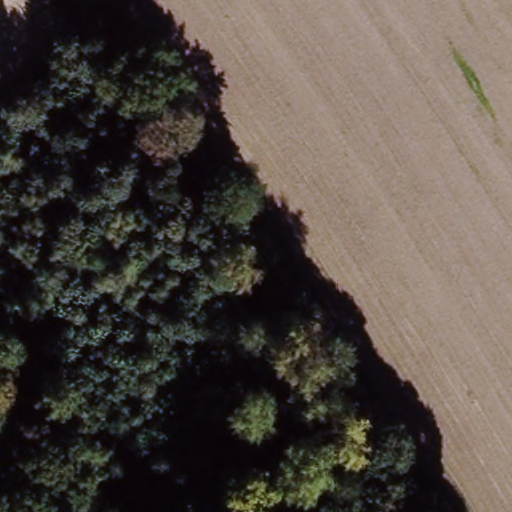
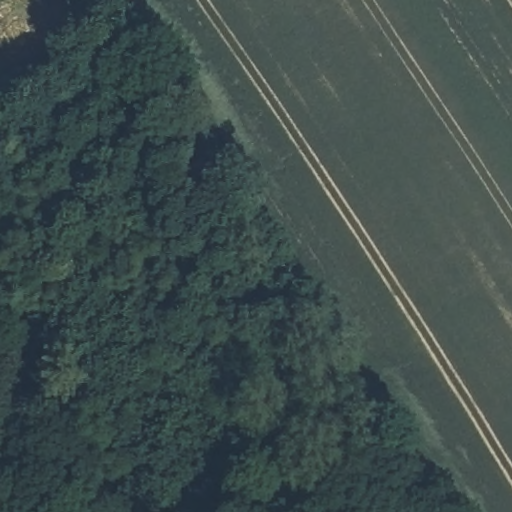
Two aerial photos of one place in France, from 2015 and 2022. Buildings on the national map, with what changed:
[]

